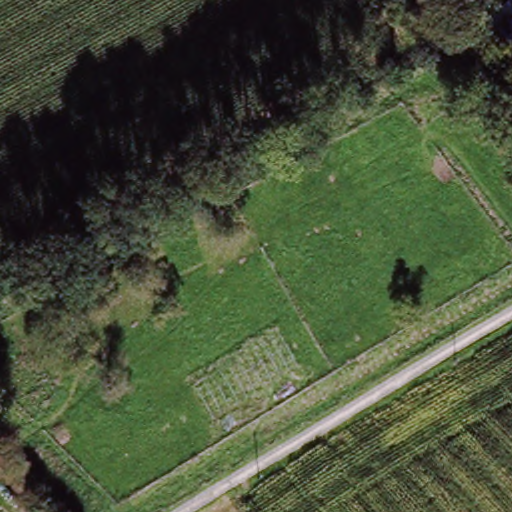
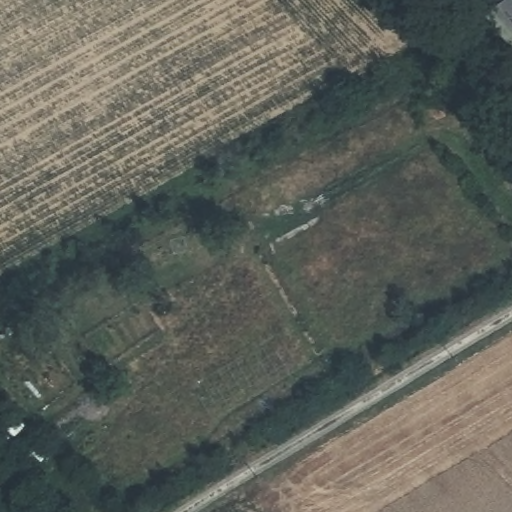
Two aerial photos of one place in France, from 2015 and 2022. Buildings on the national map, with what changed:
unchanged [(512,8),(512,48),(492,20),(512,8)]

